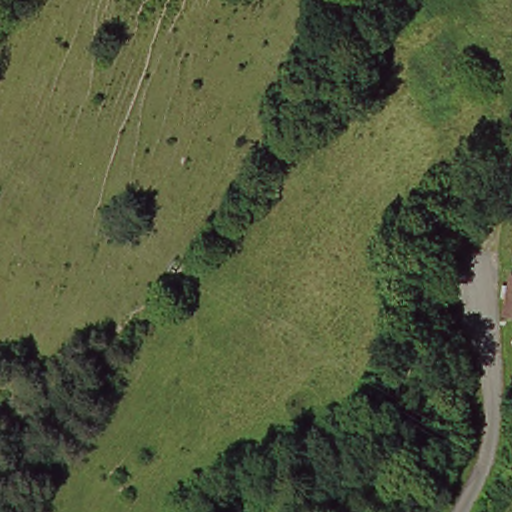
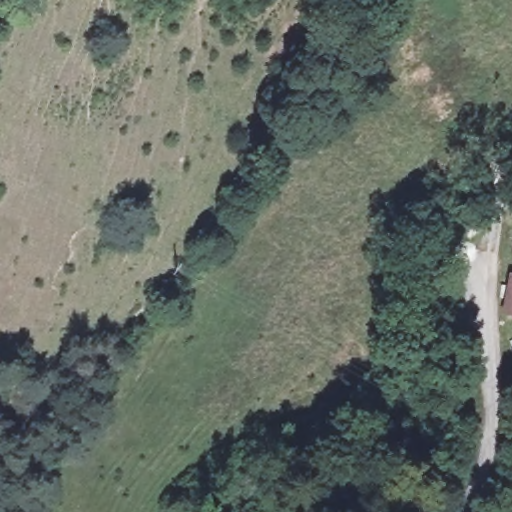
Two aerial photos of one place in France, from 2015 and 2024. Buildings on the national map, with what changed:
unchanged [(507,277),(512,278),(512,317),(501,317),(507,277)]

